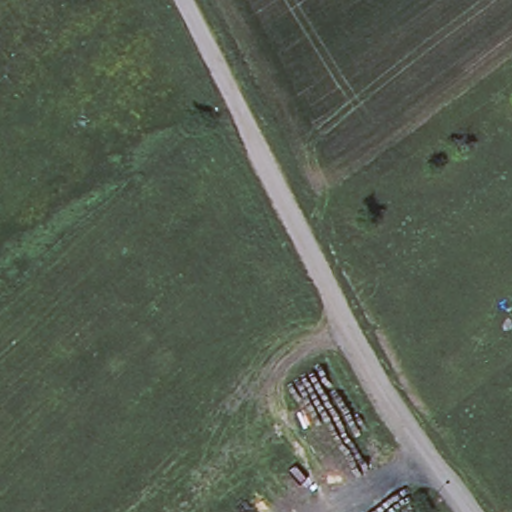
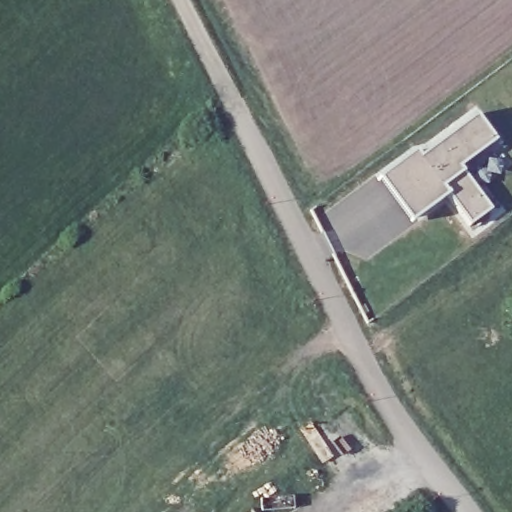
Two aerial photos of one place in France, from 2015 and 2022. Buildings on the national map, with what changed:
new [(497,141),(461,167),(464,171),(493,209),(471,225),(449,195),(412,223),(379,178),(416,150),(420,158),(477,115),(497,141)]

